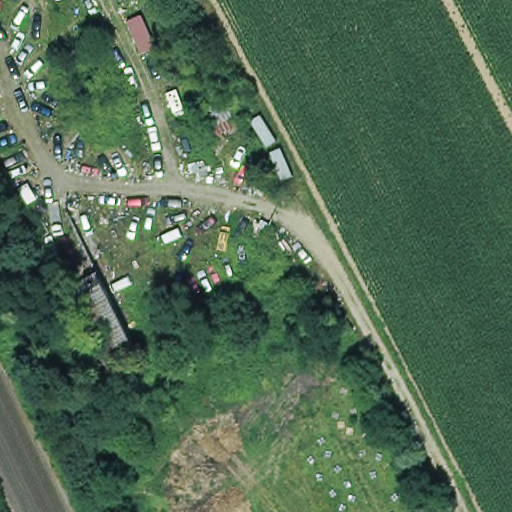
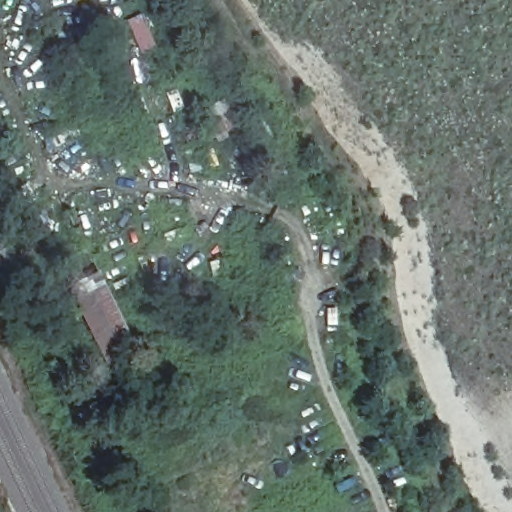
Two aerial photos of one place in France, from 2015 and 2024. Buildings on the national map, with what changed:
unchanged [(229,98),(244,128),(215,142),(199,117),(229,98)]
unchanged [(68,293),(97,275),(138,354),(107,372),(68,293)]

